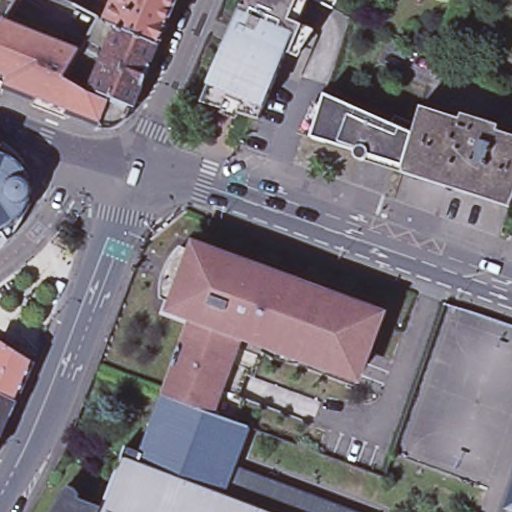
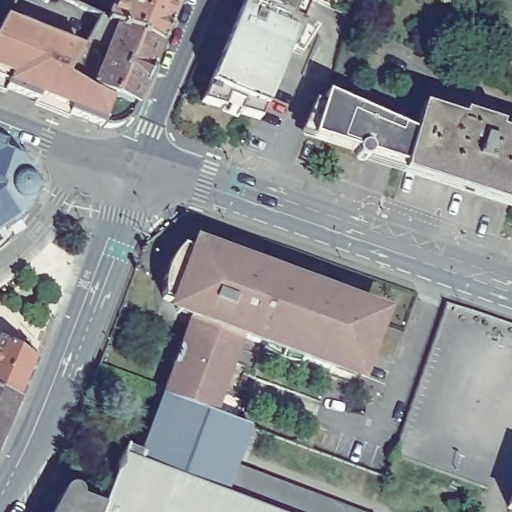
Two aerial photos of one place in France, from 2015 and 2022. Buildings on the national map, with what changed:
unchanged [(133,117),(127,122),(118,125),(110,126),(22,91),(0,82),(0,17),(10,0),(14,0),(17,2),(10,17),(87,50),(92,52),(98,44),(92,41),(107,15),(112,18),(119,0),(183,0),(166,42),(141,104),(138,110),(133,117)]
unchanged [(69,3),(70,0),(88,0),(90,0),(85,11),(69,3)]
unchanged [(300,21),(316,28),(295,54),(290,52),(267,110),(210,89),(244,0),(309,0),(300,21)]
unchanged [(407,164),(372,154),(367,157),(365,159),(362,159),(358,157),(357,154),(357,150),(310,137),(312,134),(302,132),(312,100),(322,100),(327,92),(416,131),(407,164)]
unchanged [(462,122),(464,114),(502,126),(503,135),(512,137),(512,210),(407,174),(404,173),(407,164),(416,131),(417,125),(422,106),(462,122)]
unchanged [(15,158),(27,165),(35,176),(38,189),(37,201),(32,214),(23,223),(0,239),(0,152),(15,158)]
unchanged [(178,367),(177,366),(182,351),(184,351),(196,320),(195,320),(195,318),(197,319),(199,313),(167,300),(167,283),(171,272),(174,266),(178,259),(187,250),(219,261),(222,255),(219,254),(220,252),(358,304),(368,307),(366,314),(385,321),(365,375),(336,363),(334,370),(337,370),(336,372),(247,338),(217,415),(167,397),(178,367)]
unchanged [(0,395),(0,342),(35,365),(18,403),(0,395)]
unchanged [(3,430),(0,429),(0,395),(18,403),(6,431),(3,430)]
unchanged [(217,415),(252,428),(237,467),(232,481),(147,448),(167,397),(217,415)]
unchanged [(3,430),(6,431),(0,444),(0,429),(3,430)]
unchanged [(127,448),(135,451),(134,454),(143,457),(147,448),(232,481),(237,467),(356,512),(102,512),(103,509),(127,448)]
unchanged [(65,493),(67,492),(67,491),(68,490),(69,490),(70,490),(72,489),(74,489),(75,489),(77,490),(78,491),(79,491),(80,492),(80,494),(81,495),(82,497),(82,498),(81,500),(103,509),(102,512),(55,512),(65,495),(65,493)]

